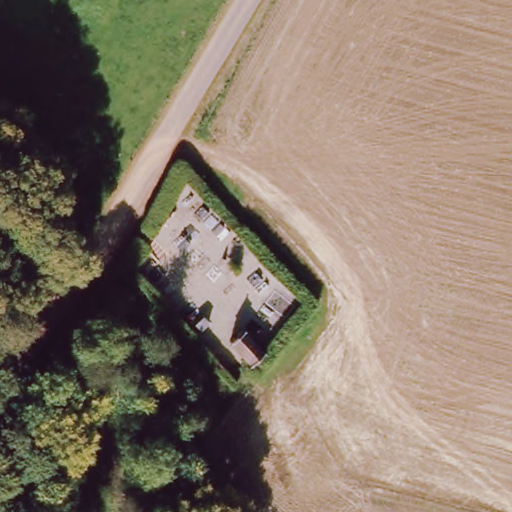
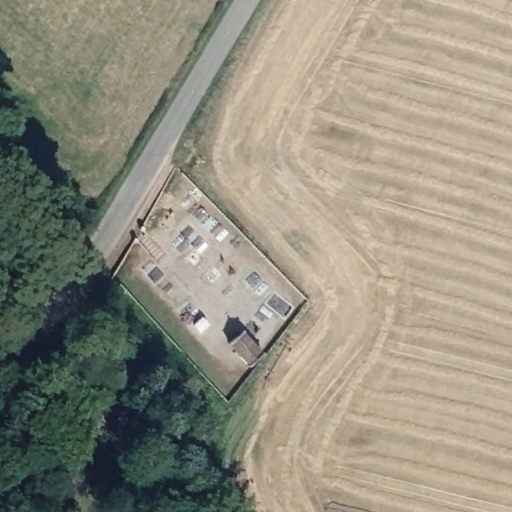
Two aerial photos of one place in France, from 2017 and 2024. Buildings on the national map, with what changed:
unchanged [(248,367),(227,340),(243,330),(264,355),(248,367)]

